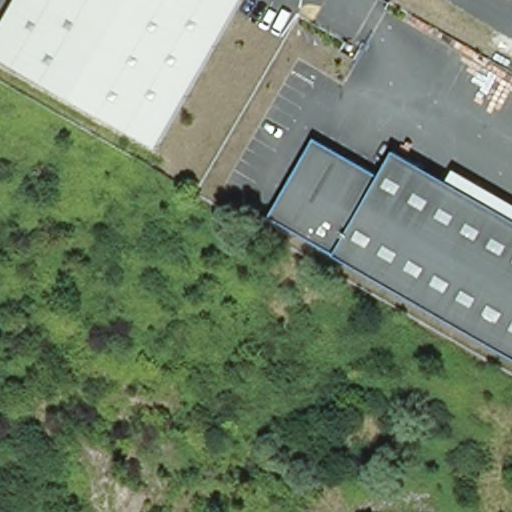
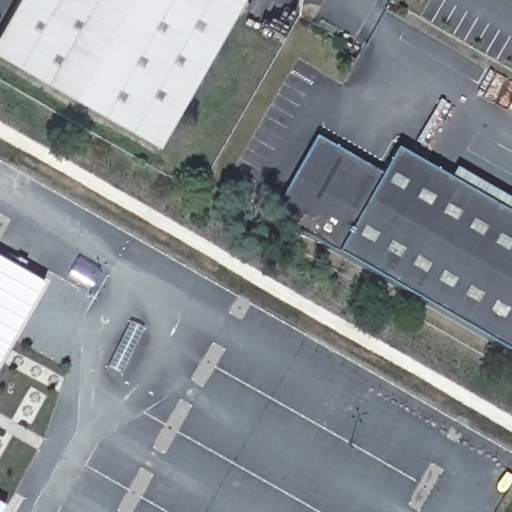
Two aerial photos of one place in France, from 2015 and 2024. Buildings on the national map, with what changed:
unchanged [(0,51),(0,32),(19,0),(246,0),(160,146),(0,51)]
unchanged [(385,176),(400,149),(512,215),(512,355),(273,217),(319,137),(385,176)]
new [(0,256),(51,284),(0,372),(0,256)]
new [(4,512),(0,512),(0,503),(7,507),(4,512)]

